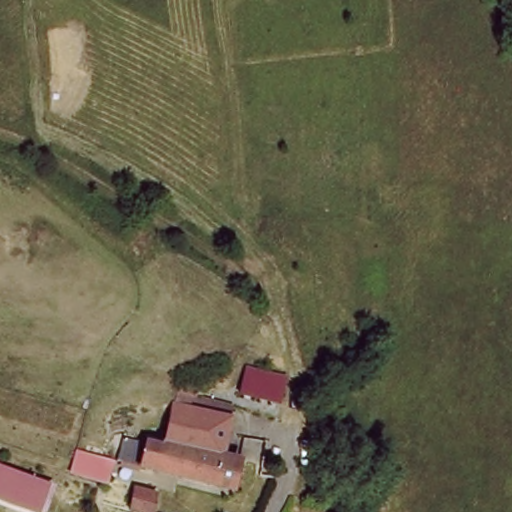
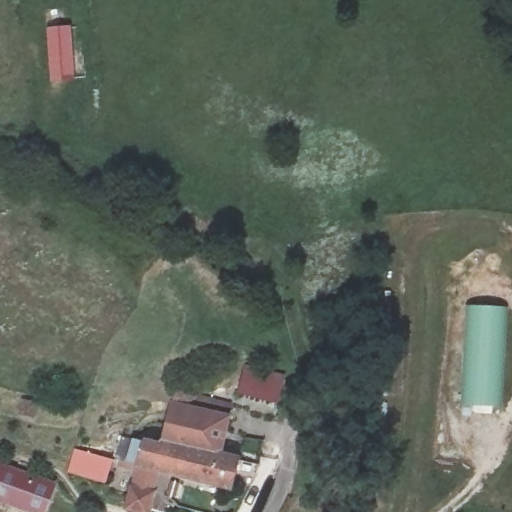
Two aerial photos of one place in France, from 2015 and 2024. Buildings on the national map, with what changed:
new [(77,82),(52,84),(48,29),(72,27),(77,82)]
new [(507,406),(462,405),(468,306),(512,310),(507,406)]
unchanged [(284,404),(240,393),(248,365),(291,375),(284,404)]
unchanged [(187,416),(244,433),(237,462),(264,470),(256,495),(155,467),(133,461),(141,430),(163,435),(180,440),(187,416)]
unchanged [(125,455),(116,481),(77,468),(83,442),(125,455)]
unchanged [(48,483),(38,506),(0,492),(0,465),(48,483)]
unchanged [(160,495),(155,512),(126,512),(133,486),(160,495)]

